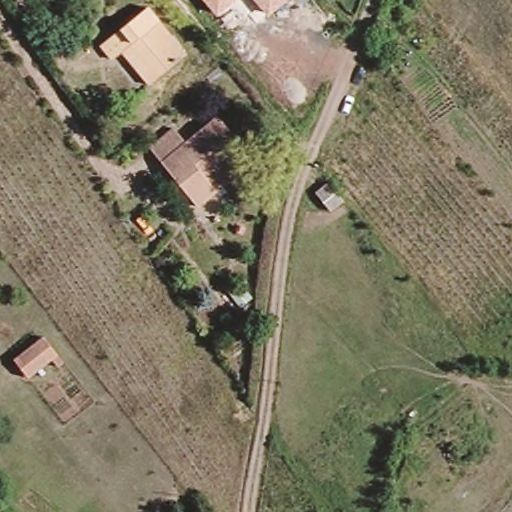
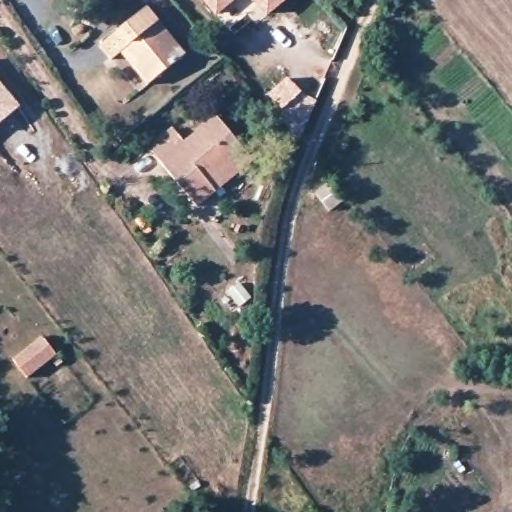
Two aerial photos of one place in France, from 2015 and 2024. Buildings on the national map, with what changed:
unchanged [(237,0),(217,15),(205,0),(237,0)]
unchanged [(253,0),(288,0),(267,16),(253,0)]
unchanged [(111,64),(100,50),(146,11),(187,54),(148,89),(131,70),(120,57),(111,64)]
new [(0,82),(21,106),(0,123),(0,82)]
unchanged [(216,189),(197,205),(150,153),(175,132),(186,144),(217,116),(246,147),(253,155),(216,189)]
unchanged [(313,190),(327,180),(342,196),(328,207),(313,190)]
unchanged [(43,338),(57,355),(28,379),(14,363),(43,338)]

